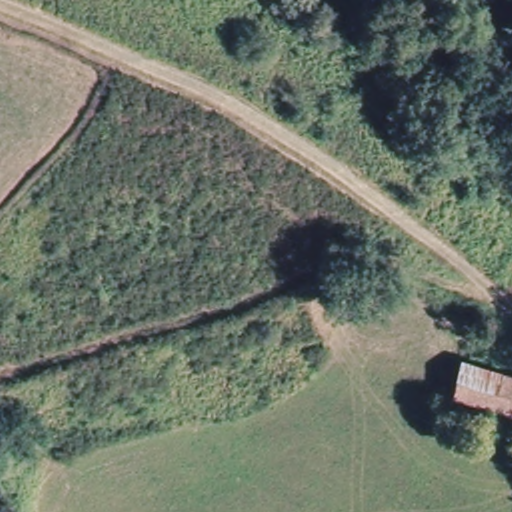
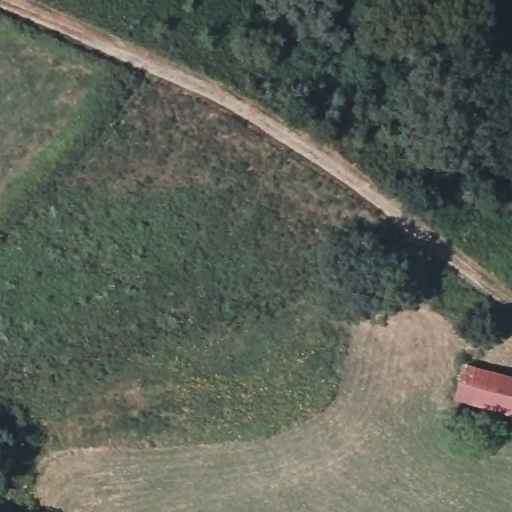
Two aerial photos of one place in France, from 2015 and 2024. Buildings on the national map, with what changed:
unchanged [(512,414),(456,399),(461,366),(480,369),(512,379),(512,414)]

